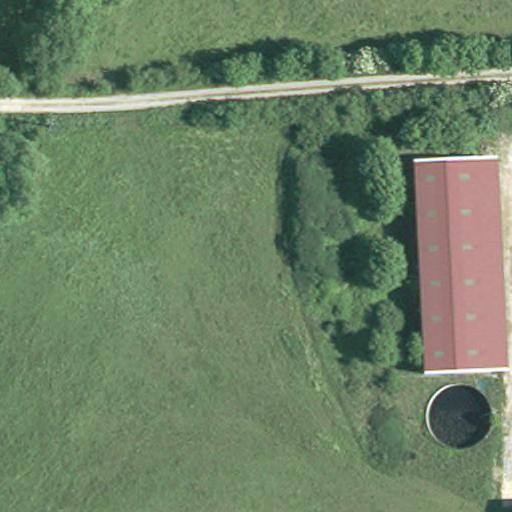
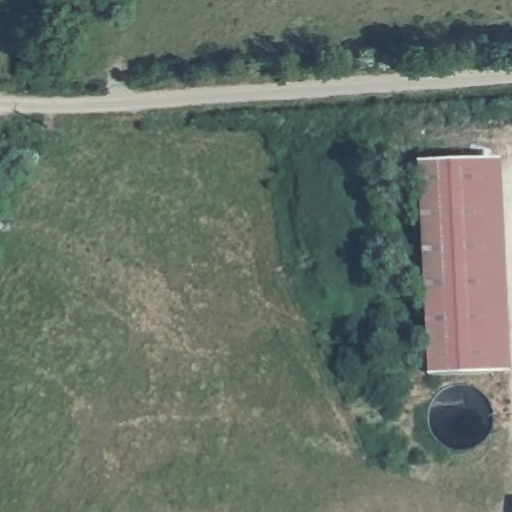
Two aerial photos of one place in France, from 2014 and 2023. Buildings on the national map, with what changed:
unchanged [(485,163),(507,162),(512,266),(512,371),(497,372),(485,163)]
unchanged [(436,375),(425,165),(485,163),(497,372),(436,375)]

